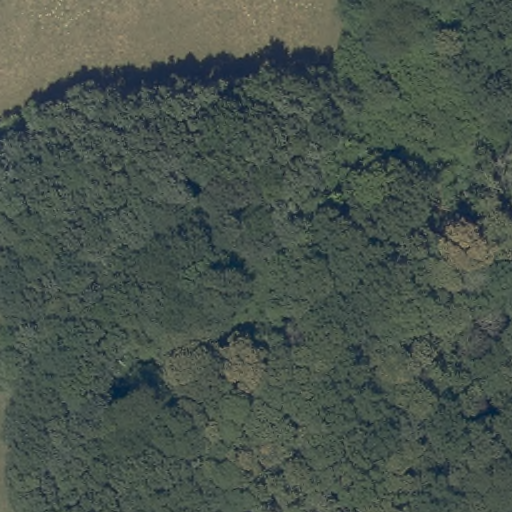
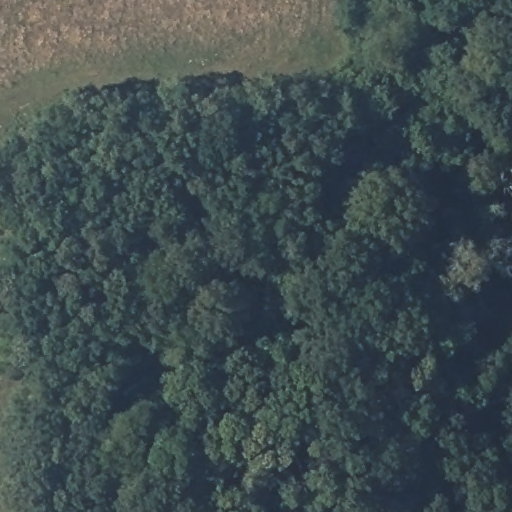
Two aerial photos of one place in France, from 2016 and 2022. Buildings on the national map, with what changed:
[]

